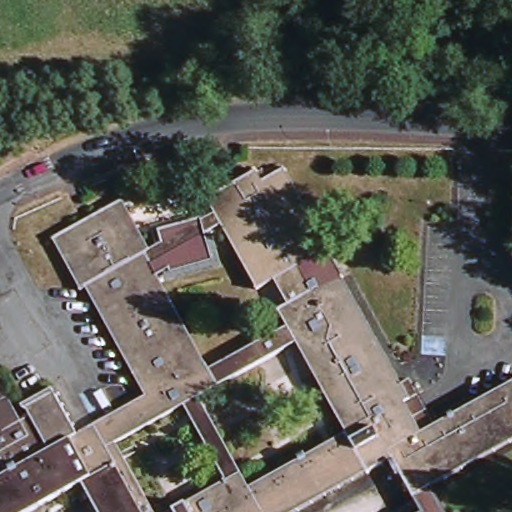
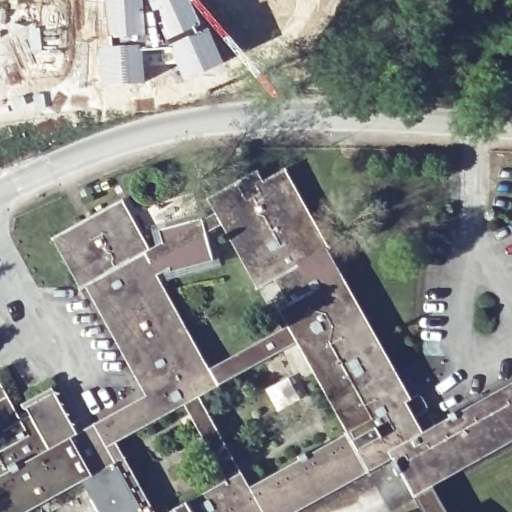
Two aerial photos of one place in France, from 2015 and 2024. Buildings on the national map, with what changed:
new [(216,36),(214,37),(224,63),(184,83),(168,51),(142,54),(141,45),(110,46),(103,0),(196,0),(209,19),(216,36)]
new [(110,46),(141,45),(142,54),(145,84),(100,87),(97,49),(110,46)]
unchanged [(280,318),(291,311),(278,288),(258,298),(217,231),(201,240),(194,227),(209,218),(201,205),(252,173),(262,186),(280,176),(327,259),(300,275),(312,296),(340,281),(426,432),(512,381),(512,446),(430,494),(407,453),(373,395),(337,412),(297,344),(272,358),(262,342),(287,329),(280,318)]
unchanged [(204,397),(190,404),(121,443),(160,512),(102,512),(86,483),(33,512),(0,512),(0,387),(20,421),(27,416),(23,405),(49,390),(54,393),(58,394),(59,404),(64,404),(65,413),(70,414),(70,421),(72,425),(76,424),(79,435),(148,398),(85,291),(82,292),(51,241),(119,203),(150,253),(194,227),(201,240),(152,270),(215,371),(262,342),(272,358),(204,397)]
unchanged [(234,479),(247,471),(257,487),(350,435),(337,412),(373,395),(407,453),(430,494),(441,512),(428,512),(395,459),(302,512),(173,512),(234,479)]
unchanged [(204,397),(247,471),(234,479),(190,404),(204,397)]

